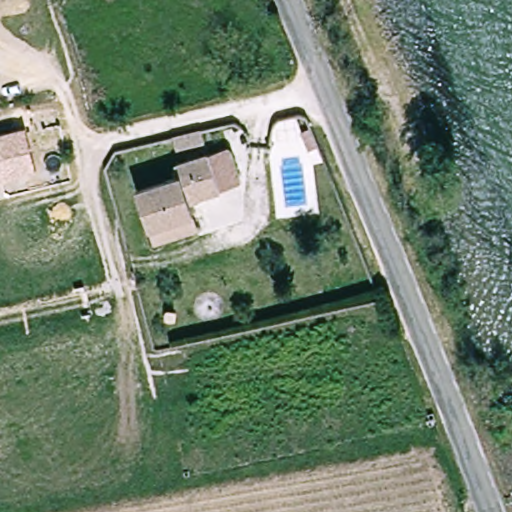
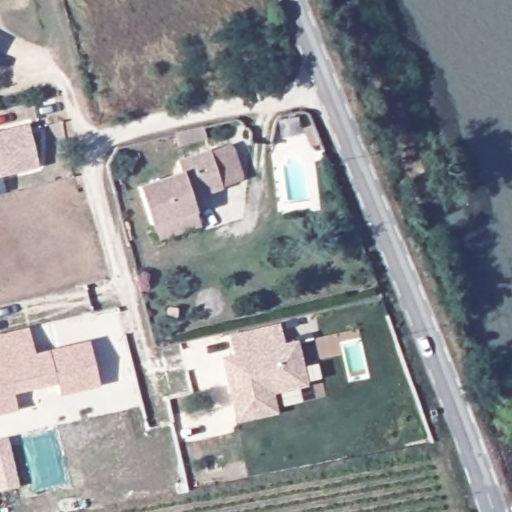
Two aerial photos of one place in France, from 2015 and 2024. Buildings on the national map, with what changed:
unchanged [(25,125),(33,165),(0,175),(0,131),(25,125)]
unchanged [(204,127),(204,128),(207,139),(179,145),(177,133),(204,127)]
unchanged [(155,238),(150,222),(138,185),(181,172),(177,162),(212,151),(232,145),(236,147),(245,175),(243,180),(223,186),(193,195),(197,207),(202,222),(155,238)]
new [(228,335),(279,323),(285,344),(297,341),(308,386),(273,394),(278,414),(236,424),(221,358),(232,355),(228,335)]
new [(28,328),(35,353),(48,350),(88,341),(99,386),(60,396),(57,383),(13,394),(17,411),(0,415),(0,335),(28,328)]
unchanged [(488,397),(505,392),(511,412),(493,416),(488,397)]

